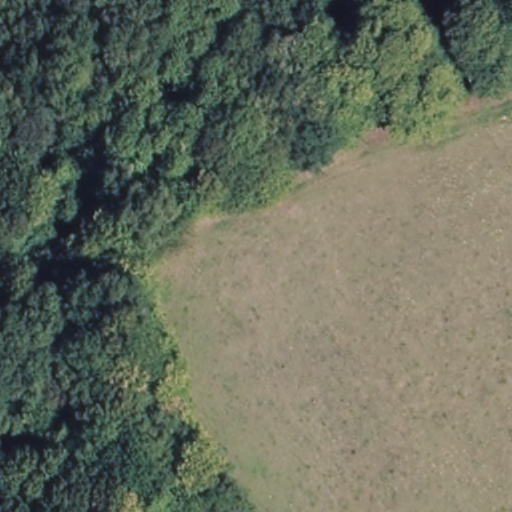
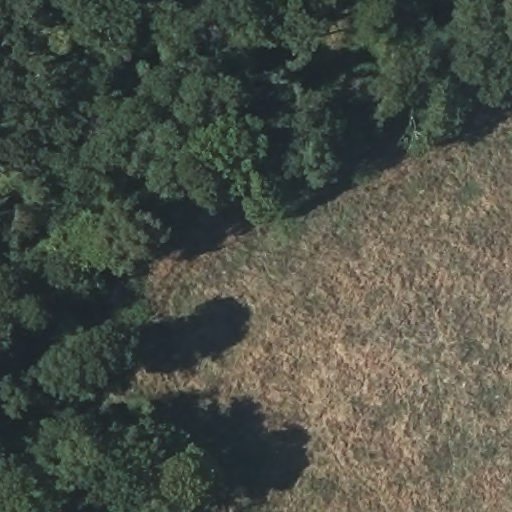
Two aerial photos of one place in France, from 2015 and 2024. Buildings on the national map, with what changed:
[]

